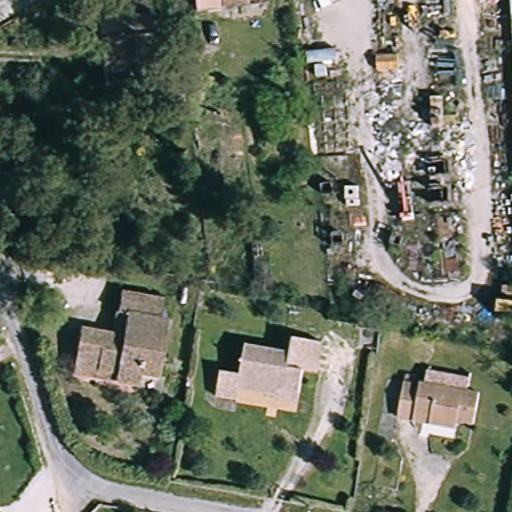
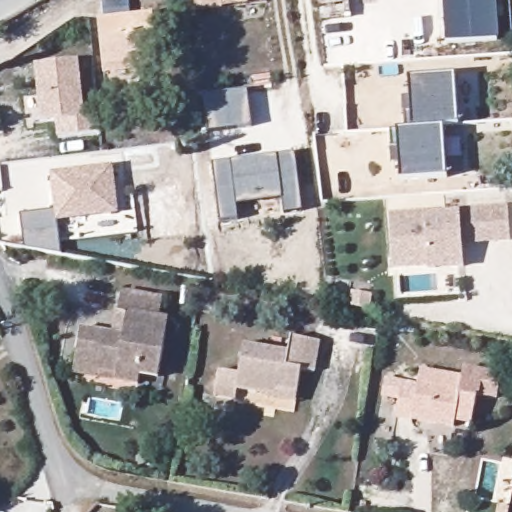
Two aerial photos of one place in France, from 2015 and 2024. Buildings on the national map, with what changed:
unchanged [(190,3),(190,0),(230,0),(216,1),(190,3)]
new [(443,0),(496,0),(498,41),(445,44),(443,0)]
unchanged [(93,25),(148,19),(153,66),(99,73),(93,25)]
new [(78,60),(85,118),(98,116),(100,133),(60,138),(57,121),(43,123),(36,64),(78,60)]
new [(456,128),(441,129),(444,178),(400,180),(398,132),(413,131),(409,80),(455,77),(456,128)]
new [(210,131),(204,96),(246,89),(252,125),(210,131)]
new [(283,213),(281,199),(236,204),(238,219),(220,221),(212,163),(294,153),(301,210),(283,213)]
new [(110,164),(116,211),(57,218),(61,252),(22,246),(17,212),(52,205),(50,172),(110,164)]
new [(511,243),(462,249),(462,268),(428,270),(395,272),(391,215),(426,213),(458,212),(508,207),(511,243)]
unchanged [(77,352),(81,329),(111,334),(118,294),(160,303),(156,322),(167,323),(157,382),(140,380),(138,389),(110,386),(112,375),(98,373),(75,369),(77,352)]
unchanged [(275,393),(273,401),(233,396),(232,404),(213,401),(216,374),(237,377),(241,347),(289,354),(291,341),(320,346),(315,374),(300,372),(296,396),(275,393)]
new [(472,392),(425,383),(427,372),(465,378),(466,369),(501,375),(497,401),(471,397),(472,392)]
unchanged [(398,384),(413,387),(415,382),(472,392),(467,424),(449,422),(448,427),(391,416),(398,384)]

